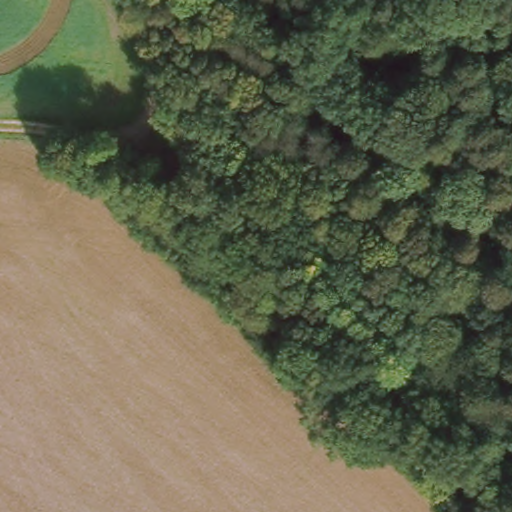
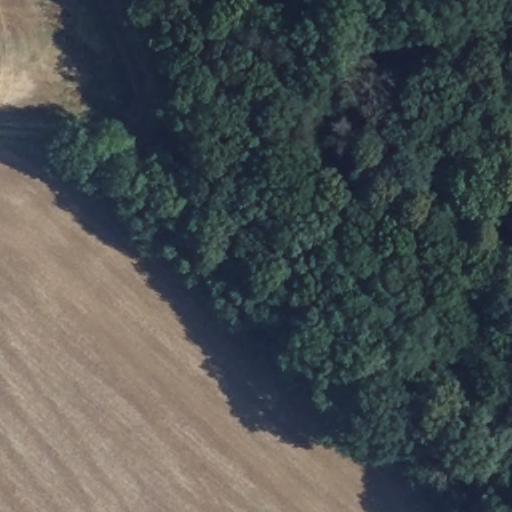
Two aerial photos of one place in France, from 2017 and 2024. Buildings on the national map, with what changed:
unchanged [(439,273),(435,289),(414,285),(417,268),(439,273)]

